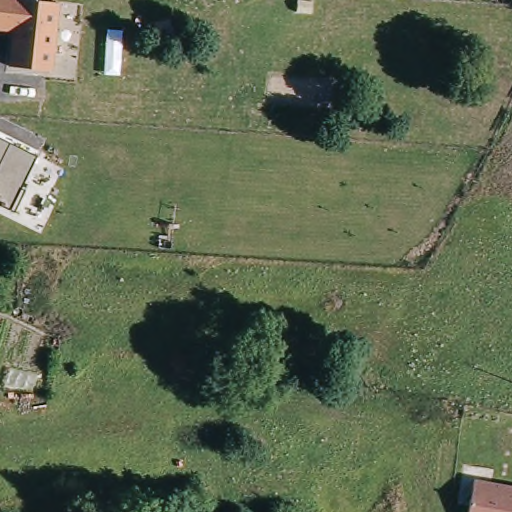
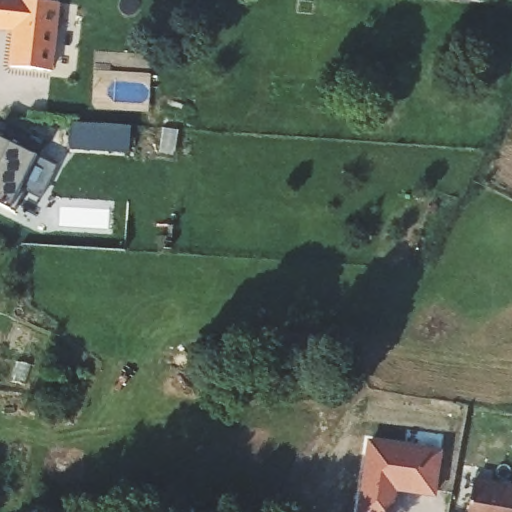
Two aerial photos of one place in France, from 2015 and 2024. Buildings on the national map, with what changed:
unchanged [(12,31),(0,29),(0,0),(58,0),(53,71),(10,65),(12,31)]
new [(134,160),(95,158),(76,157),(77,132),(95,133),(135,135),(134,160)]
unchanged [(23,187),(27,189),(14,213),(0,206),(0,137),(37,157),(23,187)]
new [(397,493),(394,512),(357,512),(367,439),(443,450),(436,498),(397,493)]
unchanged [(472,478),(512,485),(512,512),(465,512),(472,478)]

